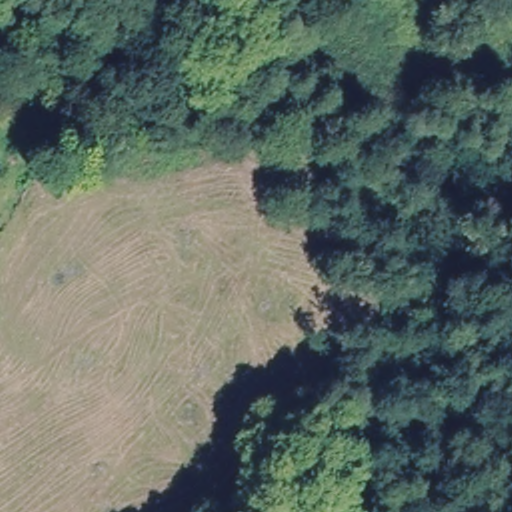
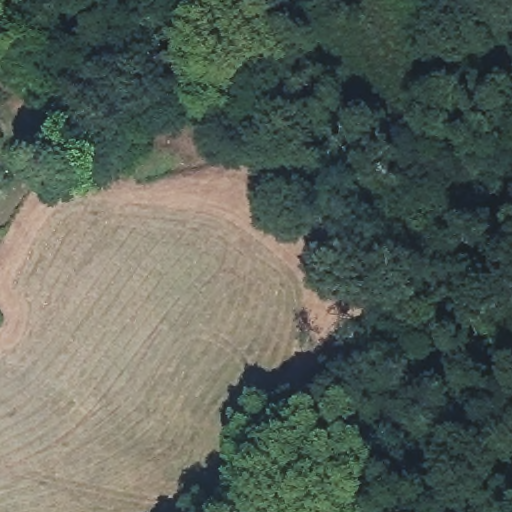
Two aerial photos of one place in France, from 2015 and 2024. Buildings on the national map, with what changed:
[]

